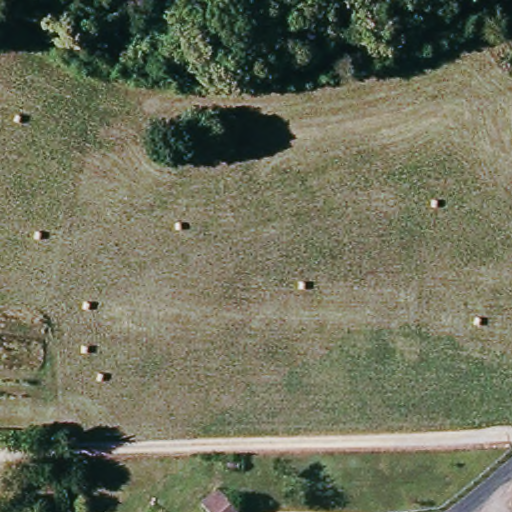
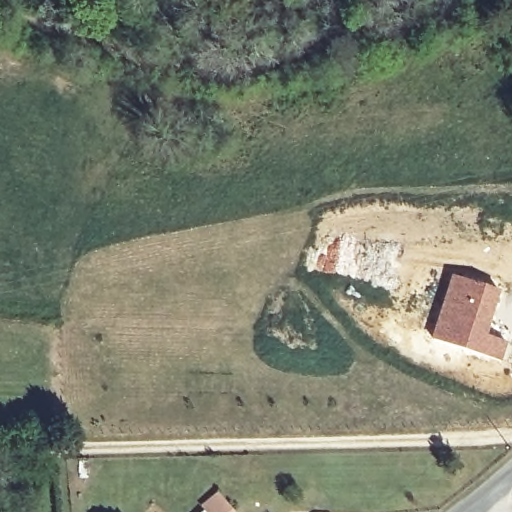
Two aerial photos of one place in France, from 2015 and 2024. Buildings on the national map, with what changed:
new [(457,275),(502,291),(487,335),(507,342),(502,361),(435,338),(457,275)]
unchanged [(245,512),(209,512),(202,505),(225,485),(247,510),(245,512)]

